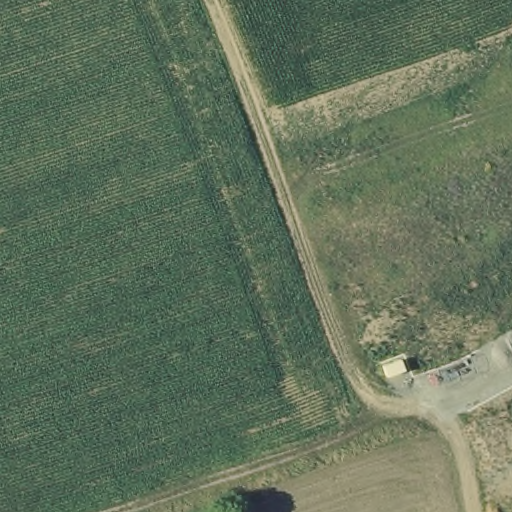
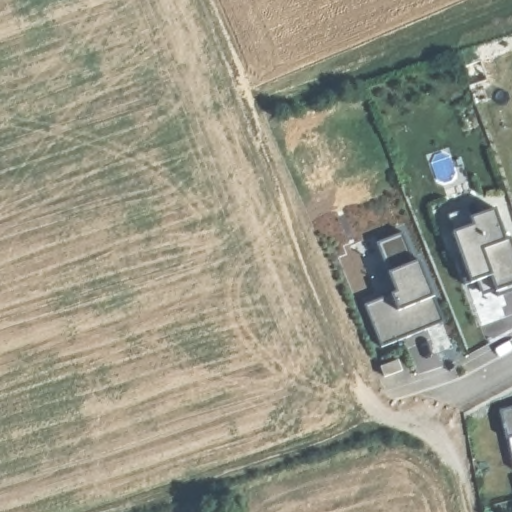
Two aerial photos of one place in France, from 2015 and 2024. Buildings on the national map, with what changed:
new [(512,242),(512,293),(501,297),(497,291),(484,294),(479,280),(472,282),(467,283),(457,258),(463,256),(454,233),(448,214),(469,209),(472,218),(494,211),(504,241),(511,239),(512,242)]
new [(399,292),(391,273),(379,244),(401,237),(411,265),(418,263),(433,297),(442,323),(381,347),(366,305),(392,295),(399,292)]
new [(383,362),(401,355),(404,366),(387,372),(383,362)]
unchanged [(508,434),(502,406),(512,404),(512,434),(508,434)]

